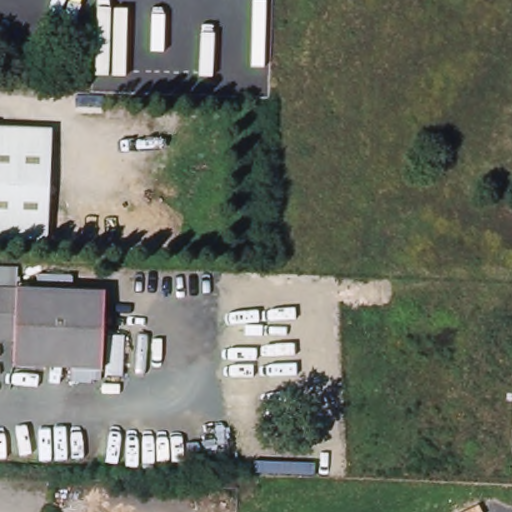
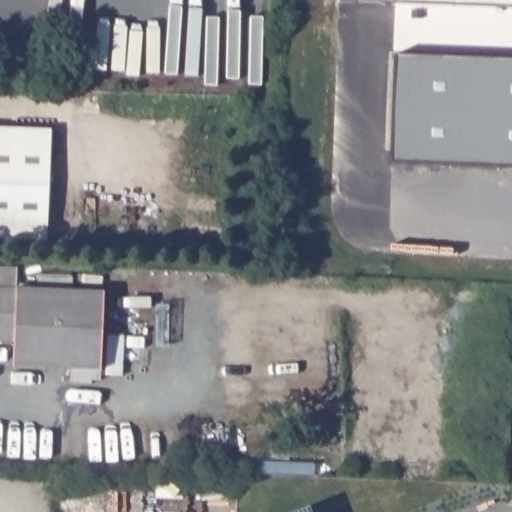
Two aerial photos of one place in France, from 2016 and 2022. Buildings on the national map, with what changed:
new [(340,2),(340,0),(512,0),(512,9),(340,2)]
new [(512,60),(512,165),(392,160),(396,55),(512,60)]
unchanged [(47,237),(0,236),(0,125),(51,125),(47,237)]
unchanged [(103,381),(94,380),(92,384),(71,384),(71,370),(16,368),(16,343),(0,342),(0,289),(105,292),(103,381)]

